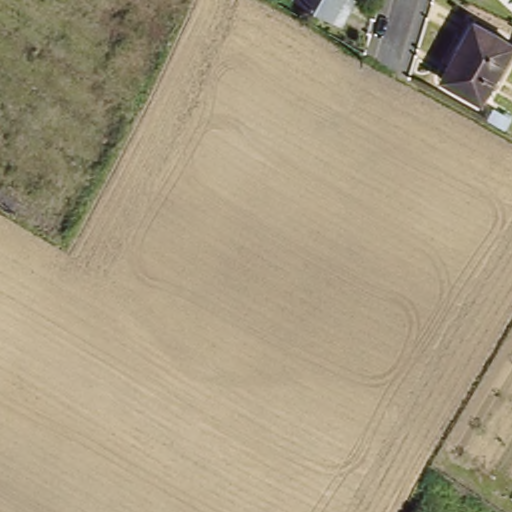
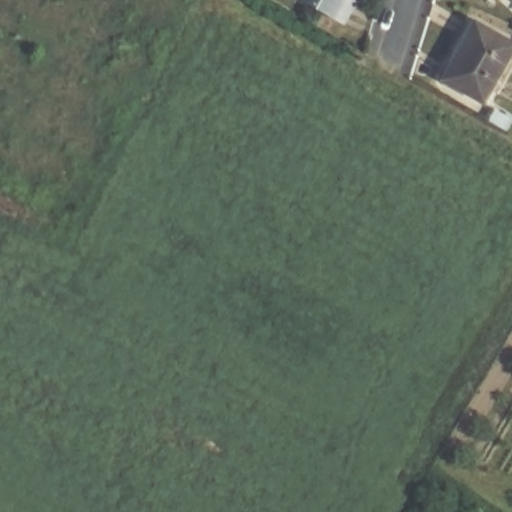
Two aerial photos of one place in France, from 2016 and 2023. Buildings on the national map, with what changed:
unchanged [(312,0),(355,0),(344,19),(312,0)]
unchanged [(447,75),(478,18),(512,35),(512,50),(487,96),(447,75)]

